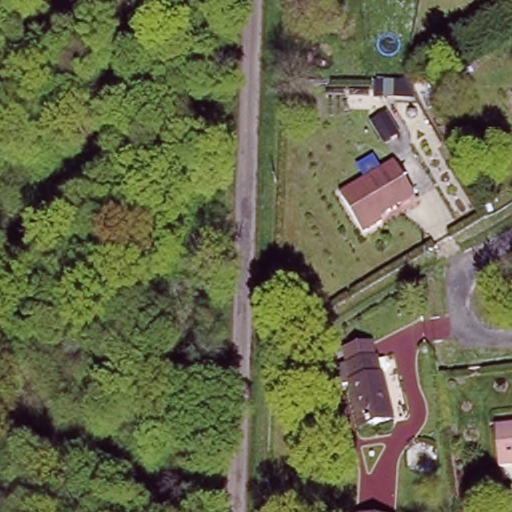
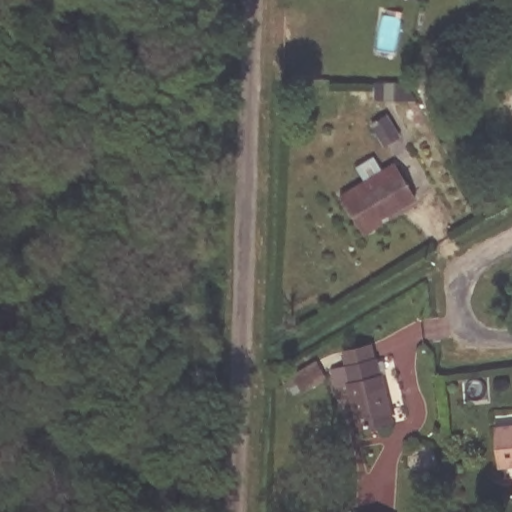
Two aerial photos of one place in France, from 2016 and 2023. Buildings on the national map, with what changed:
unchanged [(413,201),(378,222),(380,226),(362,237),(338,199),(393,167),(413,201)]
unchanged [(377,378),(378,378),(390,423),(356,431),(345,387),(347,387),(342,369),(373,362),(377,378)]
unchanged [(495,430),(512,428),(512,468),(500,469),(495,430)]

